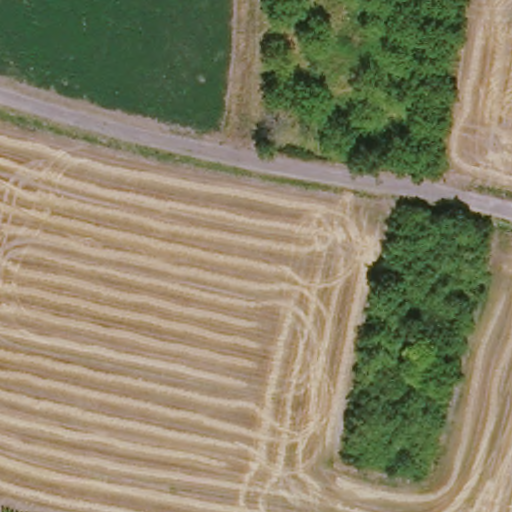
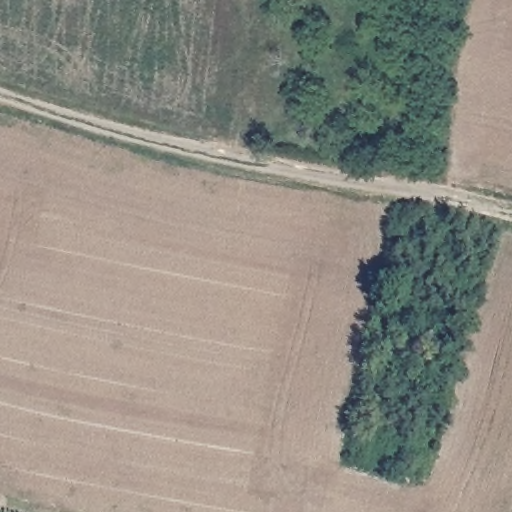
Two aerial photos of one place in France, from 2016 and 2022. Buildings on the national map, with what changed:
[]

